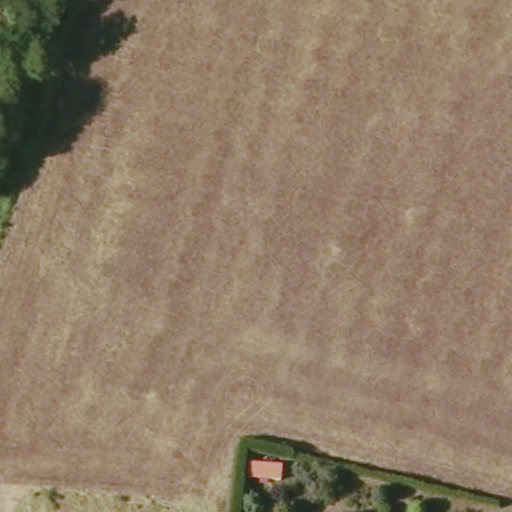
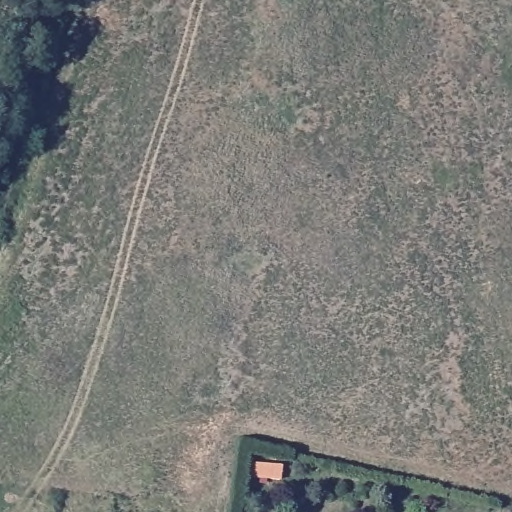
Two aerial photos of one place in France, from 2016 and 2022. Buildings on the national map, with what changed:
unchanged [(243,471),(273,473),(273,491),(242,488),(243,471)]

